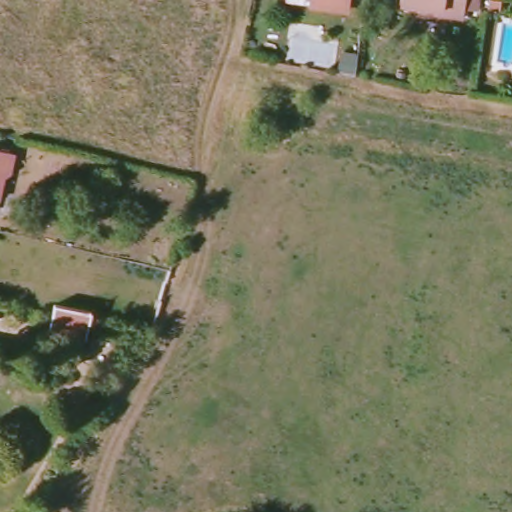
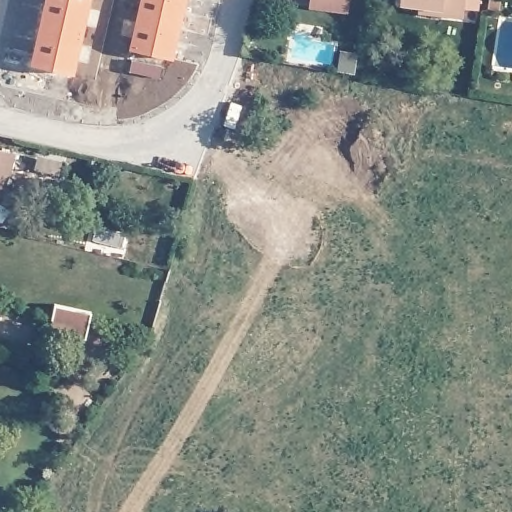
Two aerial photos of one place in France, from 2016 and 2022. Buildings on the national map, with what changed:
new [(77,79),(31,72),(48,0),(88,0),(94,0),(77,79)]
new [(190,0),(176,64),(130,52),(142,0),(190,0)]
unchanged [(313,7),(314,0),(350,0),(348,11),(313,7)]
unchanged [(447,16),(402,9),(404,0),(482,0),(481,9),(465,6),(463,26),(446,22),(447,16)]
unchanged [(16,169),(5,177),(0,195),(0,149),(20,154),(16,169)]
unchanged [(86,342),(50,333),(56,306),(93,313),(86,342)]

